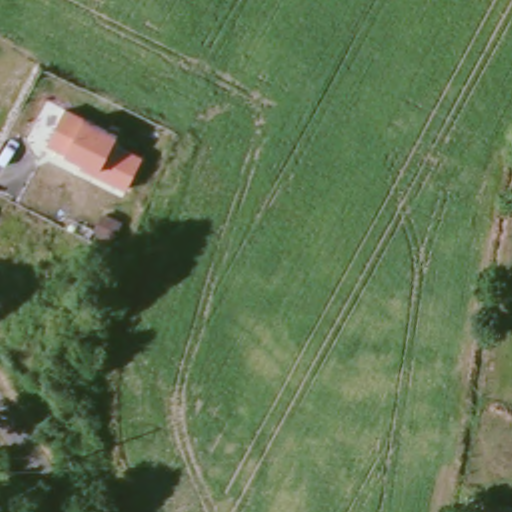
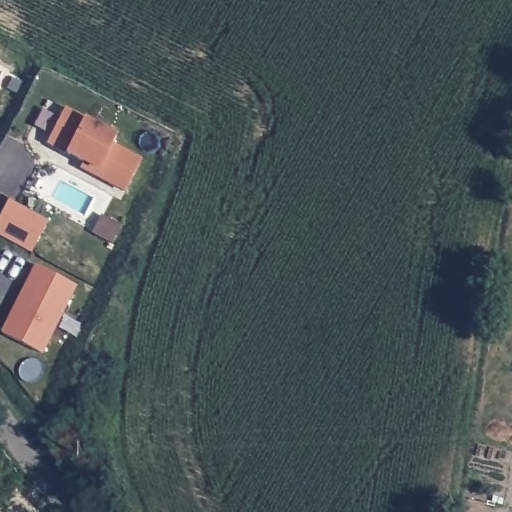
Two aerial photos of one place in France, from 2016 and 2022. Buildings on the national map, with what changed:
unchanged [(65,109),(86,117),(119,134),(116,140),(142,159),(126,191),(80,169),(83,163),(66,153),(47,145),(65,109)]
new [(0,217),(10,199),(47,219),(31,250),(0,236),(0,217)]
new [(4,330),(35,265),(77,287),(43,352),(4,330)]

